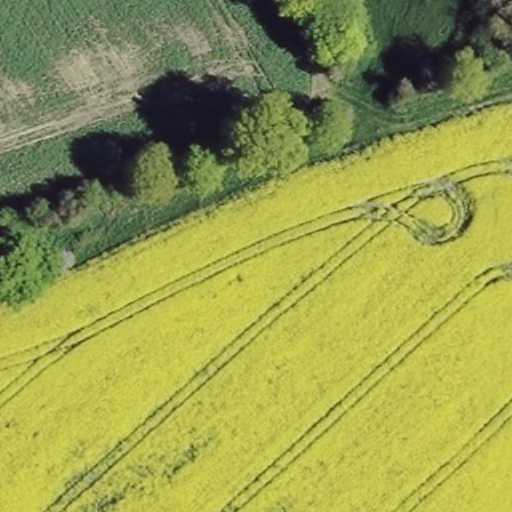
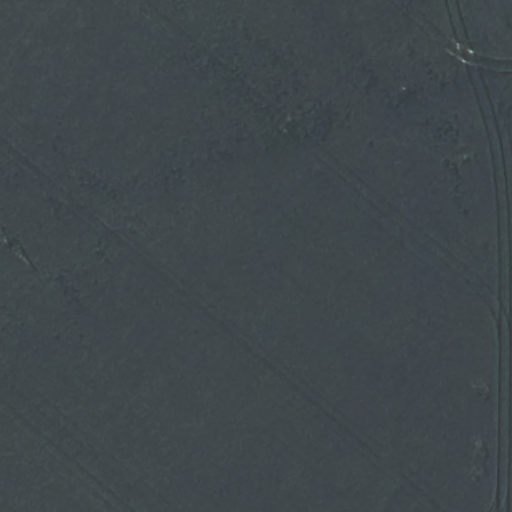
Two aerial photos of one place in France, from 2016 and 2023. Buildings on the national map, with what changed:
[]

